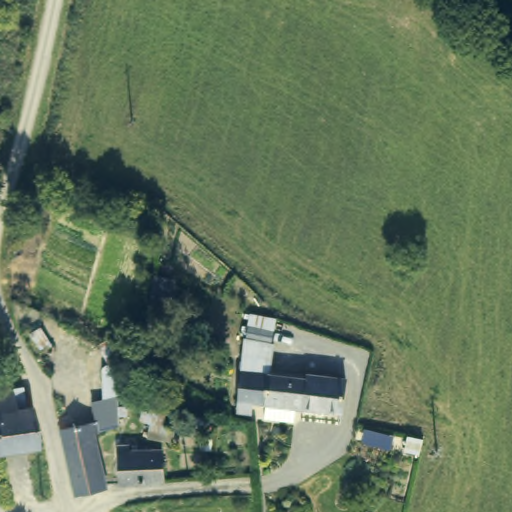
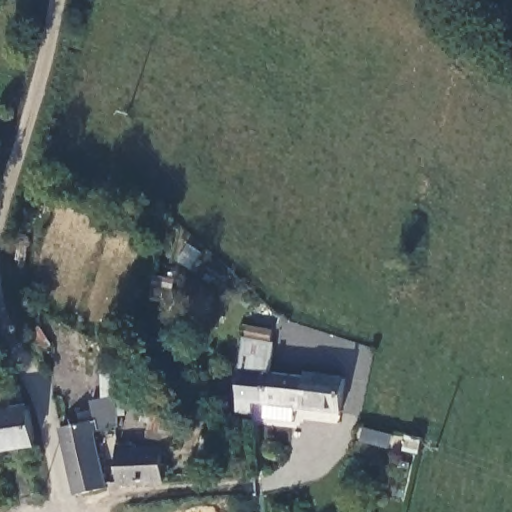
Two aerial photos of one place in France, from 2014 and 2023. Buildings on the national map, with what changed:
unchanged [(279,339),(281,340),(280,369),(243,367),(247,321),(280,323),(279,339)]
unchanged [(280,369),(346,374),(343,408),(299,405),(297,423),(265,422),(266,401),(254,401),(254,410),(238,410),(243,367),(280,369)]
unchanged [(21,407),(29,406),(38,449),(0,455),(0,390),(20,388),(21,407)]
unchanged [(91,407),(107,406),(107,409),(121,409),(121,428),(94,431),(106,490),(78,496),(61,431),(94,427),(91,407)]
unchanged [(116,452),(127,450),(128,456),(162,453),(165,484),(120,487),(116,452)]

